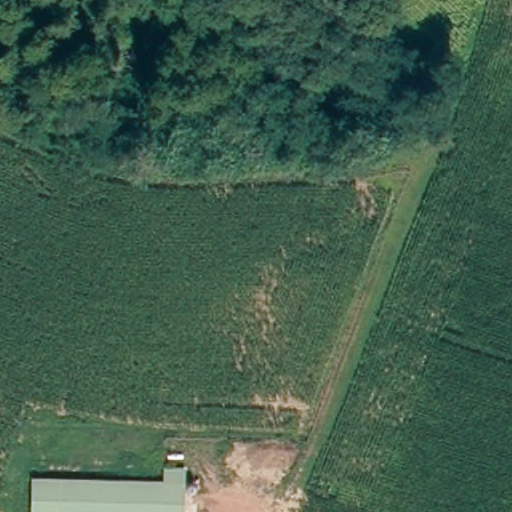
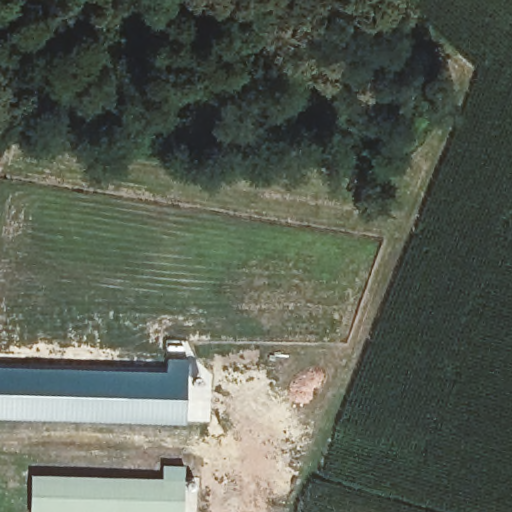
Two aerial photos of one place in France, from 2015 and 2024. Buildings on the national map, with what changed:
new [(0,418),(0,365),(165,371),(166,358),(187,358),(185,424),(0,418)]
unchanged [(31,512),(31,480),(162,482),(163,467),(184,467),(183,512),(31,512)]

